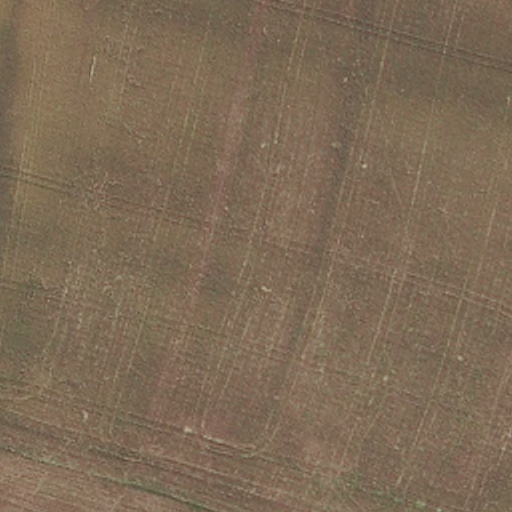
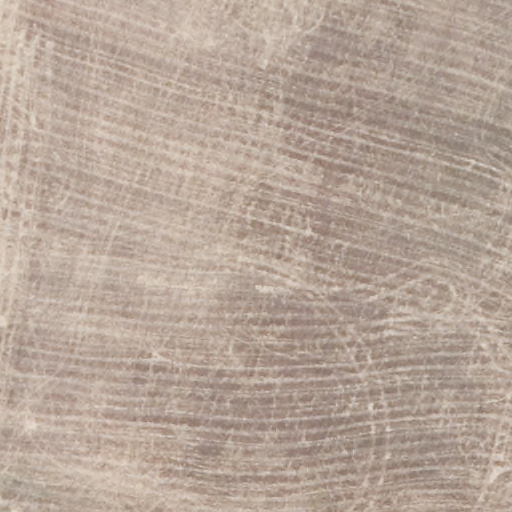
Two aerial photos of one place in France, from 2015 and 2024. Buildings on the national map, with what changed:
[]

